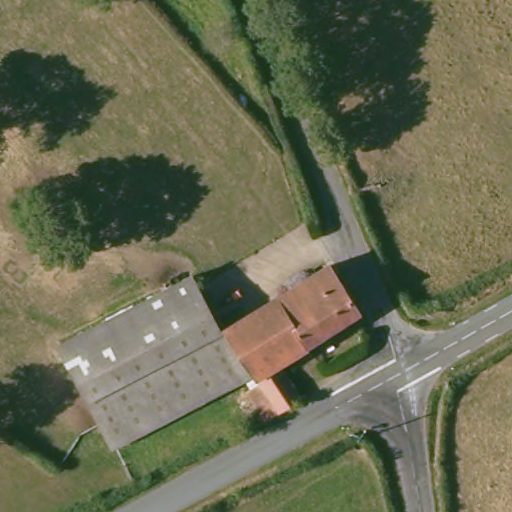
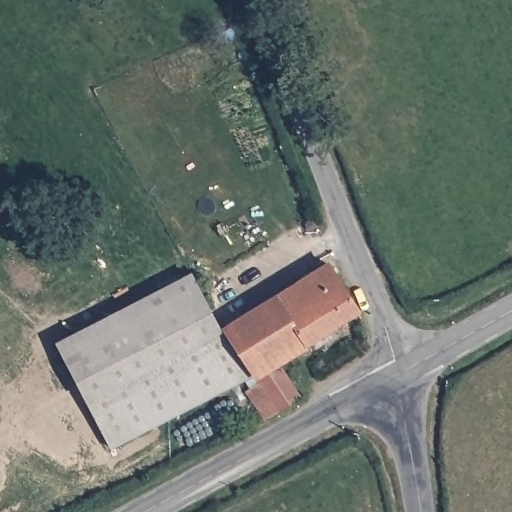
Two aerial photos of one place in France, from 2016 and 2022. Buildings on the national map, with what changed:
unchanged [(325,258),(356,310),(275,360),(298,396),(260,416),(232,375),(241,368),(213,324),(325,258)]
unchanged [(180,274),(213,324),(241,368),(232,375),(109,447),(52,351),(180,274)]

